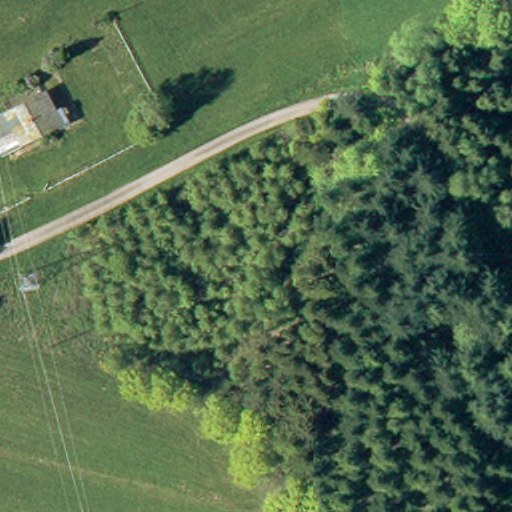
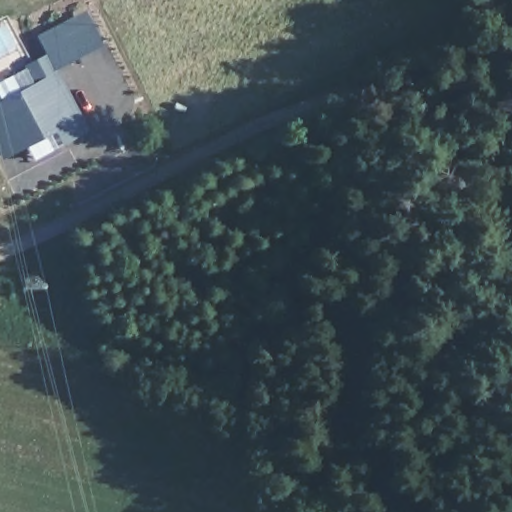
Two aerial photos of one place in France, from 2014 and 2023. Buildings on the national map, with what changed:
new [(103,43),(58,67),(83,116),(1,159),(0,156),(0,100),(54,70),(36,35),(85,9),(103,43)]
demolished [(63,124),(51,130),(49,126),(0,151),(0,118),(33,100),(41,113),(54,106),(63,124)]

